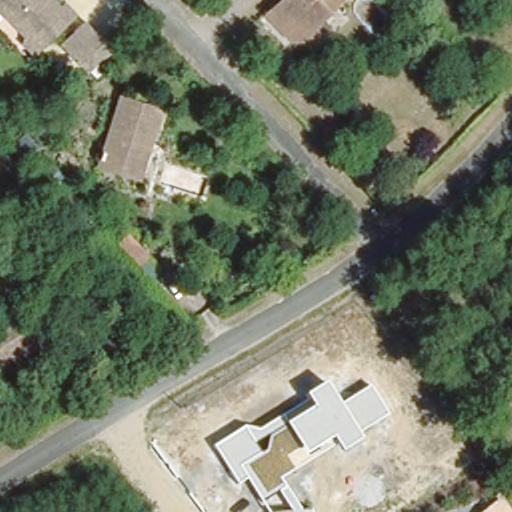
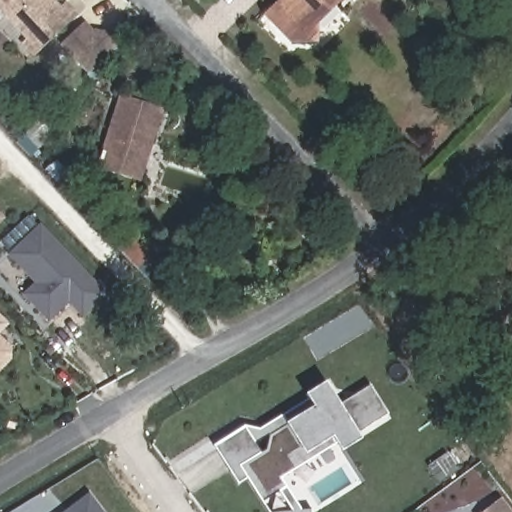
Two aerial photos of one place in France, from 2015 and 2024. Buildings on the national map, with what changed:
unchanged [(67,15),(73,10),(85,22),(42,61),(31,49),(37,43),(0,4),(0,0),(54,0),(67,15)]
unchanged [(273,2),(276,0),(336,0),(318,16),(315,38),(290,37),(265,10),(273,2)]
unchanged [(124,59),(96,84),(96,85),(60,48),(89,21),(124,59)]
unchanged [(118,93),(159,106),(147,141),(139,138),(135,148),(139,149),(130,178),(94,166),(118,93)]
new [(0,222),(0,213),(5,218),(0,222)]
new [(35,284),(7,255),(41,224),(107,294),(81,317),(68,302),(47,322),(24,296),(35,284)]
unchanged [(127,250),(147,273),(135,284),(125,272),(116,261),(127,250)]
new [(9,324),(0,333),(0,315),(9,324)]
new [(12,348),(11,359),(0,370),(0,337),(12,348)]
unchanged [(360,433),(363,439),(343,451),(337,443),(283,477),(302,510),(315,509),(315,512),(273,512),(291,509),(278,492),(261,502),(245,479),(238,484),(212,446),(245,426),(258,428),(307,398),(306,395),(328,382),(341,401),(370,385),(390,414),(360,433)]
new [(104,512),(63,512),(89,492),(104,512)]
unchanged [(512,507),(512,512),(480,512),(502,494),(512,507)]

